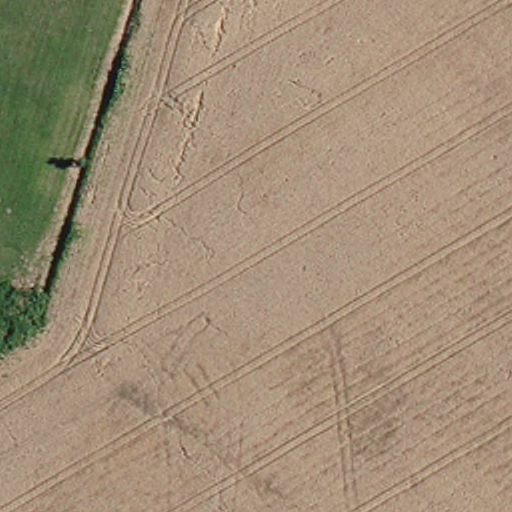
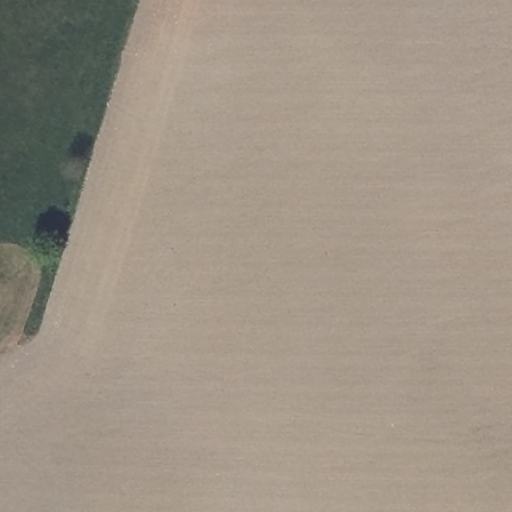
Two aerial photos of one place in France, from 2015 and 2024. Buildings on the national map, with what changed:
[]

